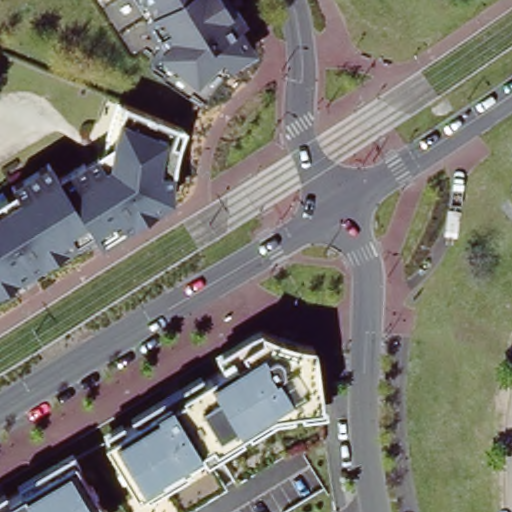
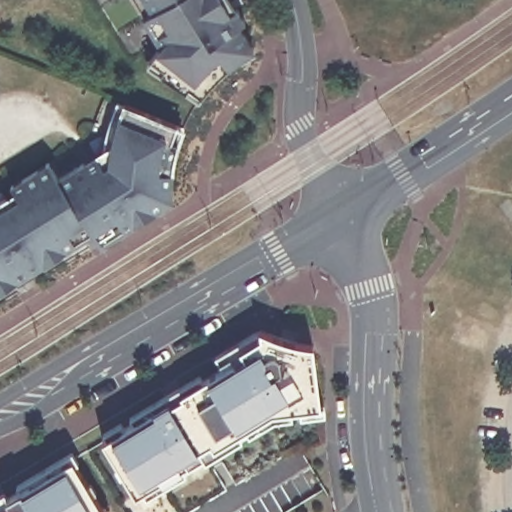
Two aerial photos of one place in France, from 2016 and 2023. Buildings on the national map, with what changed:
unchanged [(162,71),(150,61),(161,46),(144,17),(153,12),(145,0),(232,0),(243,19),(236,24),(255,53),(242,61),(228,72),(215,85),(205,97),(198,107),(157,77),(162,71)]
unchanged [(99,252),(88,237),(0,292),(0,210),(15,201),(8,189),(45,166),(55,184),(108,151),(110,147),(110,142),(110,137),(110,129),(112,122),(115,117),(119,109),(183,136),(181,140),(177,154),(175,167),(174,167),(173,178),(172,181),(173,192),(174,204),(162,212),(99,252)]
unchanged [(98,436),(212,367),(207,357),(255,332),(307,348),(316,416),(297,417),(293,412),(130,497),(98,436)]
unchanged [(65,457),(97,512),(0,512),(0,498),(65,457)]

